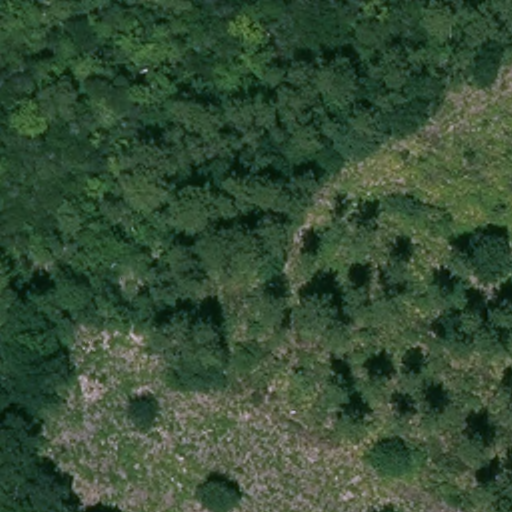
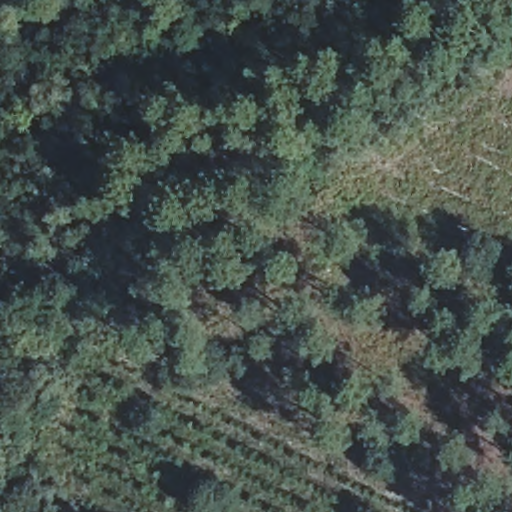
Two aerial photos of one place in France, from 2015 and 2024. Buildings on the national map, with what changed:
[]

